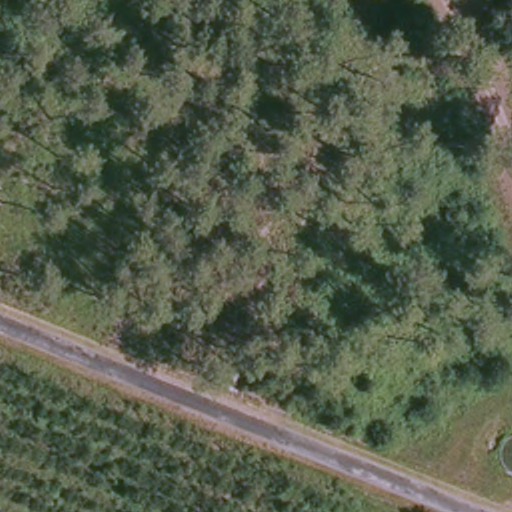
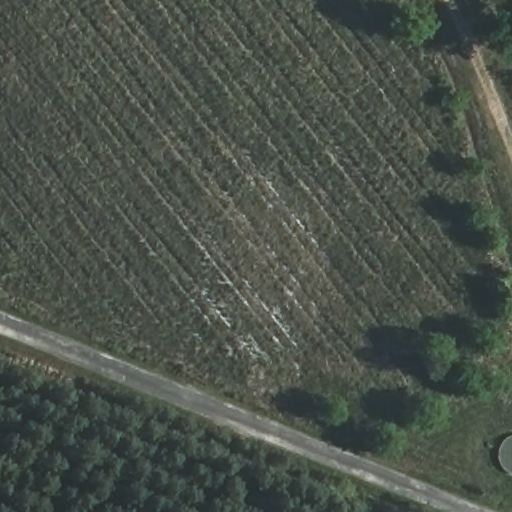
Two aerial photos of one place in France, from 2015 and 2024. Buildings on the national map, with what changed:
[]

